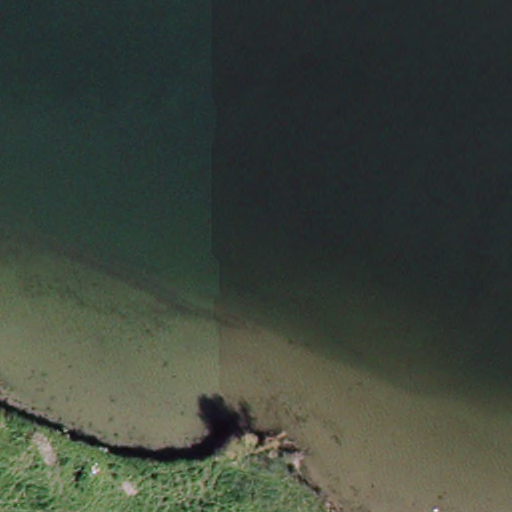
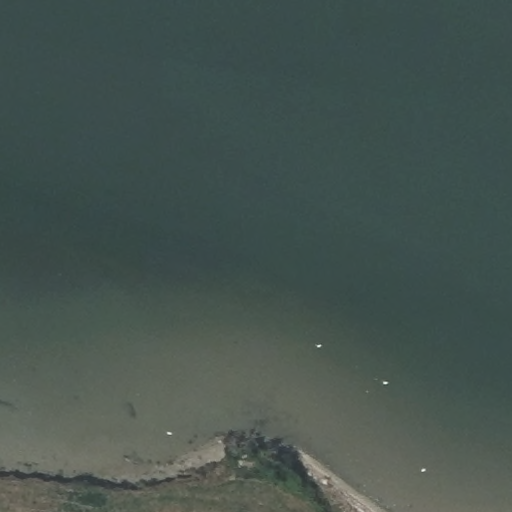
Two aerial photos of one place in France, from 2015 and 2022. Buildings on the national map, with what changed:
[]

